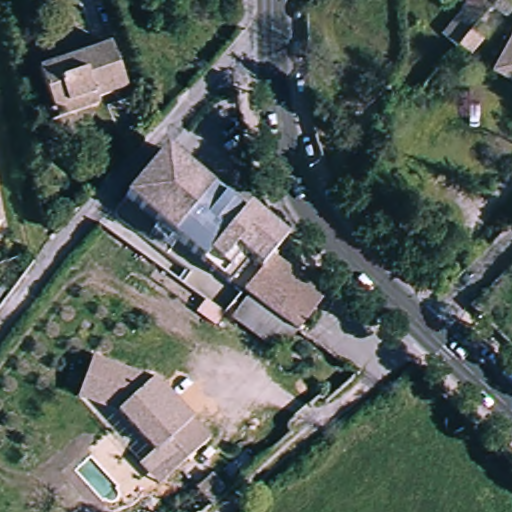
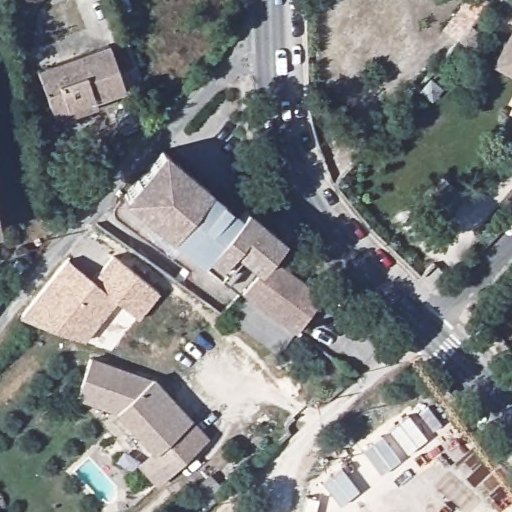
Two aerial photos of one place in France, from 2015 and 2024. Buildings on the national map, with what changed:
unchanged [(489,3),(491,0),(501,0),(512,6),(512,22),(486,7),(489,3)]
unchanged [(445,28),(458,13),(468,22),(456,37),(445,28)]
unchanged [(512,32),(512,82),(491,69),(512,32)]
unchanged [(50,112),(34,67),(107,43),(121,88),(50,112)]
unchanged [(121,197),(165,148),(240,211),(245,204),(286,240),(273,255),(325,296),(297,332),(279,354),(229,317),(245,295),(221,280),(121,197)]
new [(116,299),(84,340),(18,317),(65,257),(92,279),(111,254),(160,292),(138,318),(116,299)]
unchanged [(154,378),(193,420),(210,436),(186,460),(167,439),(154,452),(117,411),(77,398),(92,357),(154,378)]
unchanged [(228,485),(212,505),(194,492),(210,472),(228,485)]

